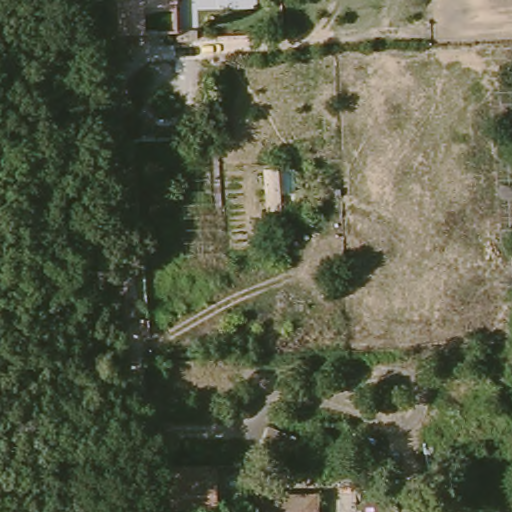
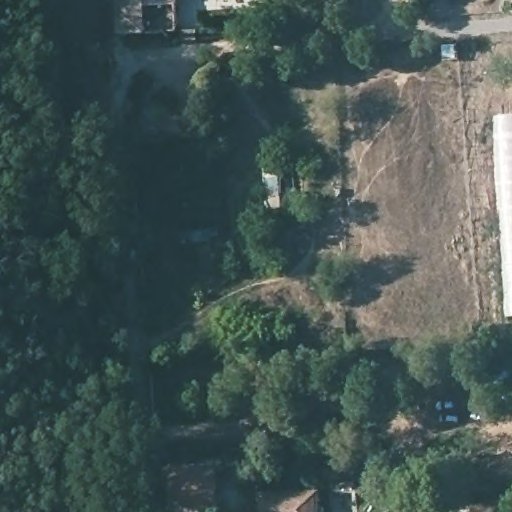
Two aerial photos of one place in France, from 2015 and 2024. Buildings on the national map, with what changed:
unchanged [(131,33),(129,0),(178,0),(180,31),(141,34),(131,33)]
new [(504,317),(493,117),(512,116),(512,317),(504,317)]
unchanged [(226,252),(176,252),(173,146),(221,142),(226,252)]
unchanged [(222,467),(224,508),(183,510),(181,468),(222,467)]
unchanged [(321,483),(321,512),(263,512),(263,486),(321,483)]

